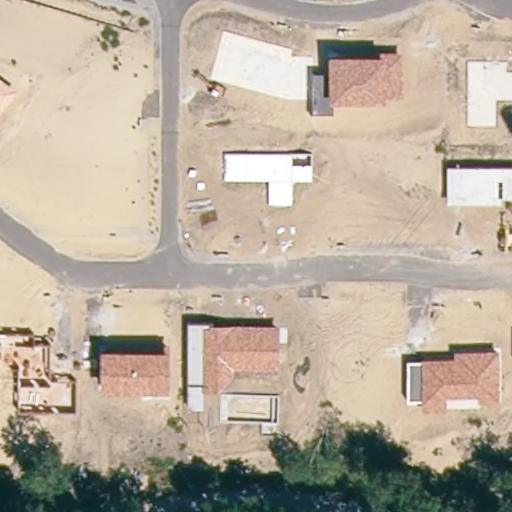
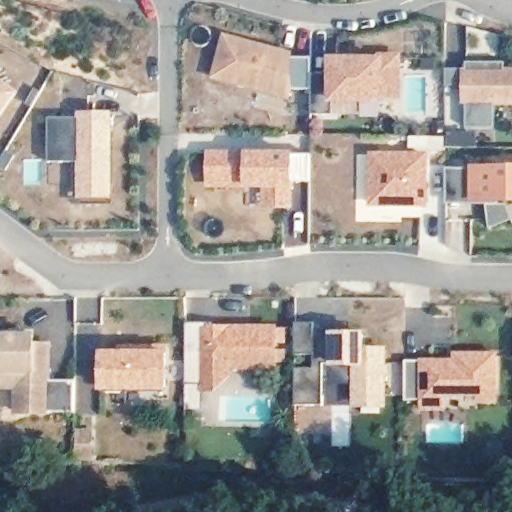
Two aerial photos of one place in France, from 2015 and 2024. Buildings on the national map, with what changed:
new [(295,52),(293,57),(312,56),(313,74),(313,87),(292,87),(293,97),(211,76),(224,31),(295,52)]
unchanged [(402,53),(404,98),(385,98),(385,103),(335,103),(334,115),(313,116),(313,97),(313,74),(328,73),(330,55),(381,56),(380,52),(402,53)]
new [(467,60),(507,61),(507,67),(512,67),(512,104),(495,105),(495,125),(469,125),(468,103),(463,103),(463,83),(447,83),(447,67),(467,67),(467,60)]
unchanged [(17,91),(0,116),(0,78),(17,91)]
new [(79,115),(79,110),(115,111),(114,202),(78,202),(77,159),(50,159),(50,115),(79,115)]
new [(249,149),(249,152),(295,151),(295,153),(312,153),(311,179),(295,178),(295,189),(295,208),(266,208),(265,188),(247,188),(247,185),(210,187),(209,150),(249,149)]
new [(373,155),(427,155),(427,204),(373,204),(373,155)]
new [(471,164),(512,164),(512,203),(508,203),(512,214),(512,219),(491,228),(487,201),(448,202),(447,168),(471,167),(471,164)]
new [(316,322),(316,327),(366,328),(366,332),(369,332),(368,346),(388,345),(388,407),(355,407),(354,368),(332,367),(331,360),(325,360),(325,403),(298,403),(298,367),(316,367),(316,351),(298,351),(299,321),(316,322)]
unchanged [(280,369),(234,369),(234,376),(217,393),(204,393),(204,409),(187,409),(187,322),(210,322),(210,325),(280,324),(280,369)]
new [(37,332),(37,341),(53,341),(54,380),(76,380),(76,411),(51,412),(51,415),(15,416),(16,389),(0,388),(0,331),(37,332)]
unchanged [(170,352),(170,391),(101,392),(101,350),(170,352)]
unchanged [(499,404),(477,403),(478,396),(446,397),(446,412),(420,411),(421,399),(406,399),(407,360),(454,359),(454,352),(498,352),(499,404)]

